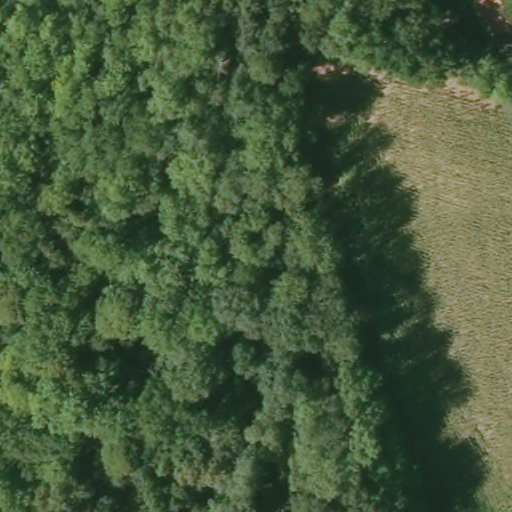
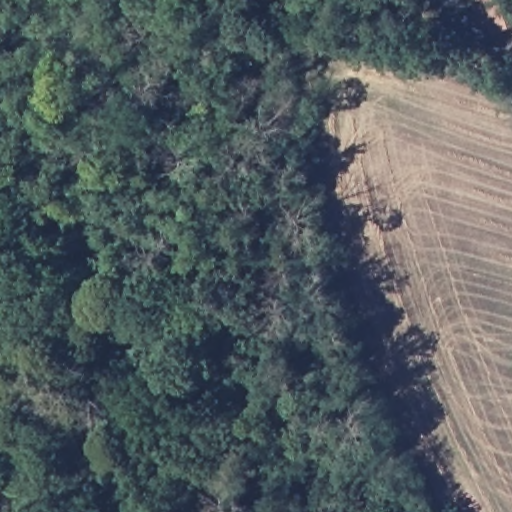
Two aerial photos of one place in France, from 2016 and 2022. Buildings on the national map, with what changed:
unchanged [(484,22),(476,2),(481,0),(512,0),(512,29),(497,35),(493,20),(484,22)]

